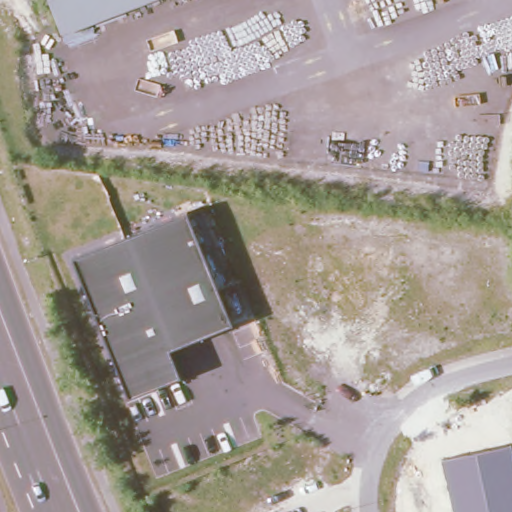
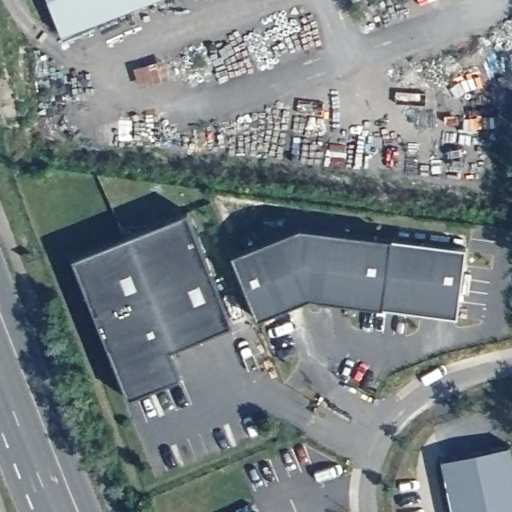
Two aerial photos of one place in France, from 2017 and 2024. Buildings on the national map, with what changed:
unchanged [(45,0),(151,0),(59,35),(45,0)]
unchanged [(232,322),(170,349),(180,375),(129,396),(74,258),(185,212),(232,322)]
new [(457,316),(384,305),(309,297),(259,316),(232,254),(300,226),(392,237),(467,247),(457,316)]
unchanged [(512,452),(512,512),(452,512),(442,461),(510,445),(512,452)]

